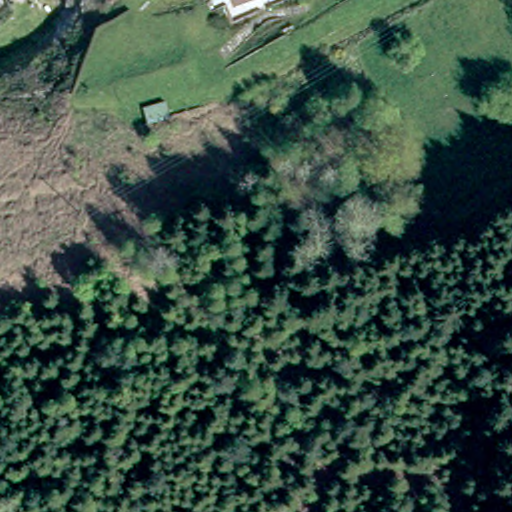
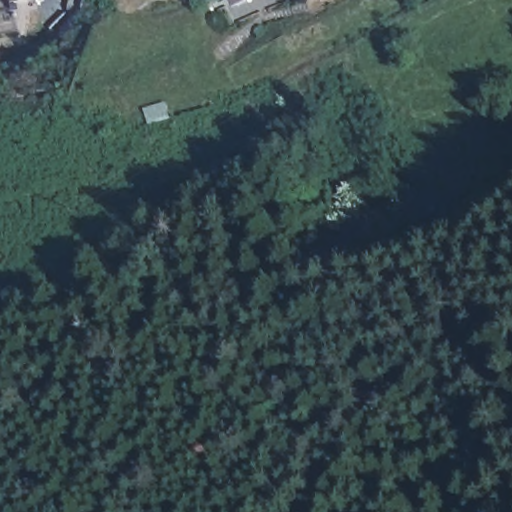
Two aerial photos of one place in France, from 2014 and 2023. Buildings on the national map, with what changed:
unchanged [(234,0),(238,0),(235,1),(234,0)]

